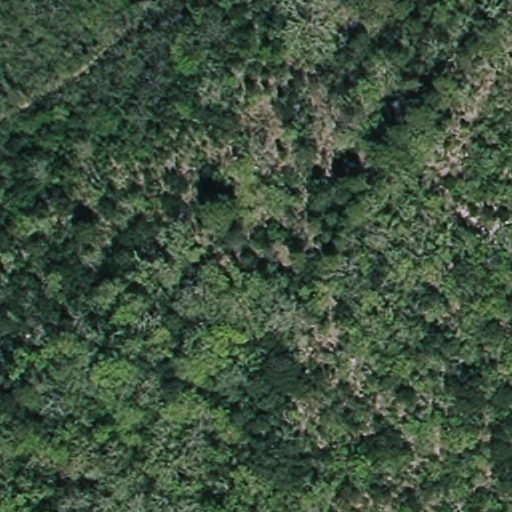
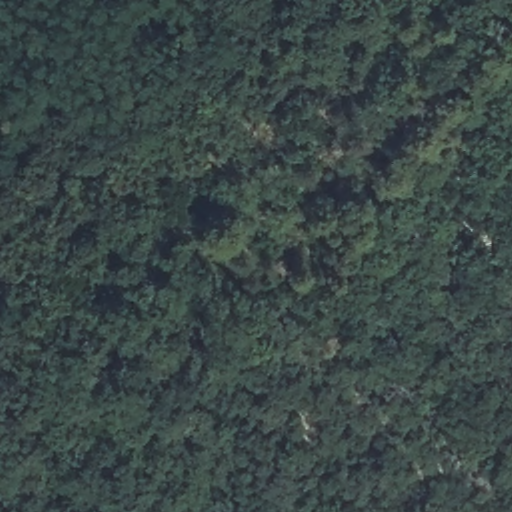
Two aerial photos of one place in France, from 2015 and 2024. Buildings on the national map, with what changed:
[]

